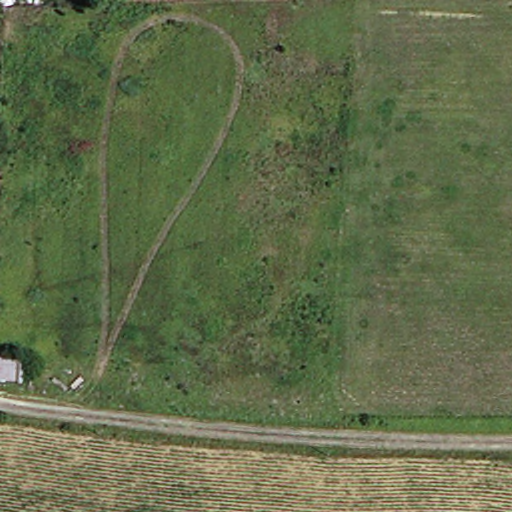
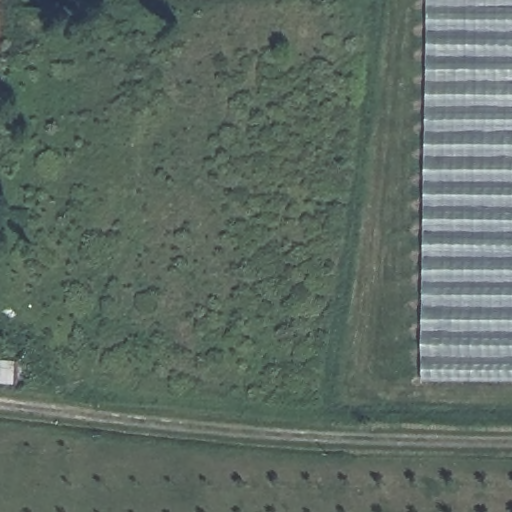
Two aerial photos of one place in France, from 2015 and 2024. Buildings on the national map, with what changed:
new [(428,0),(512,0),(512,383),(423,382),(428,0)]
unchanged [(2,42),(0,60),(0,42),(2,42)]

